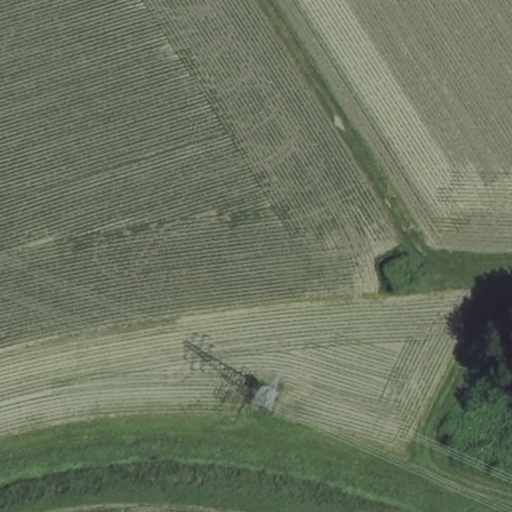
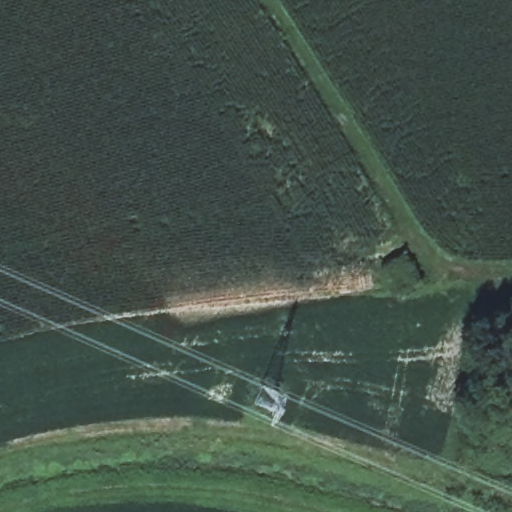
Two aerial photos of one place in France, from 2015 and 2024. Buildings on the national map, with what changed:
unchanged [(413,278),(393,287),(383,262),(404,254),(413,278)]

